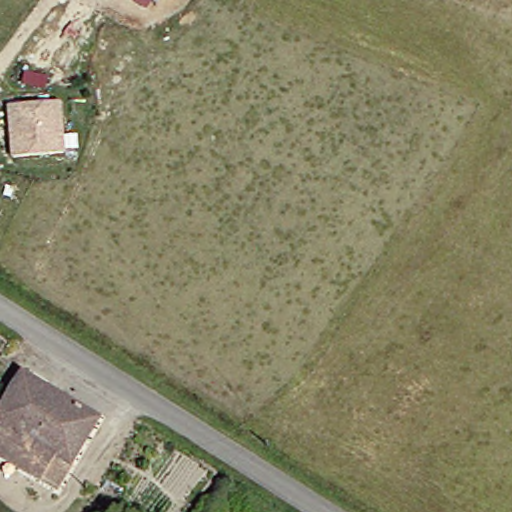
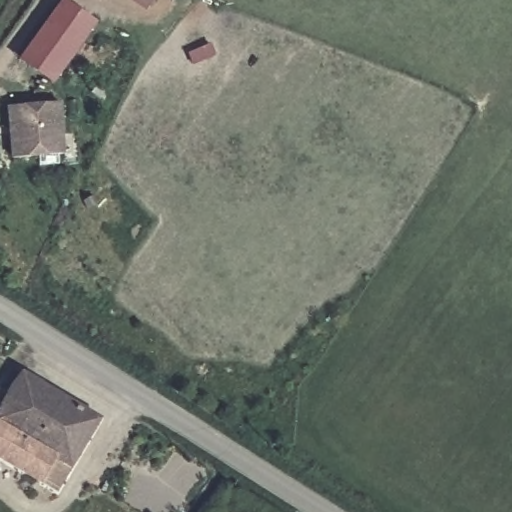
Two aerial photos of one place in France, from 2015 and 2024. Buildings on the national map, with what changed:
new [(95,22),(53,83),(19,58),(60,0),(65,0),(95,22)]
new [(146,10),(132,0),(152,0),(146,10)]
unchanged [(12,108),(62,104),(66,155),(16,159),(12,108)]
unchanged [(60,487),(0,452),(0,406),(24,369),(90,407),(102,414),(75,460),(60,487)]

